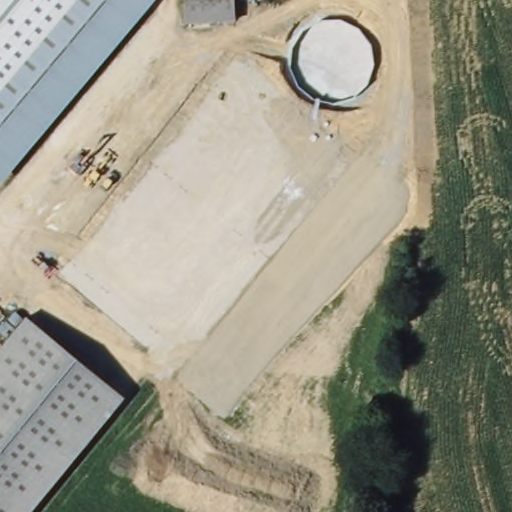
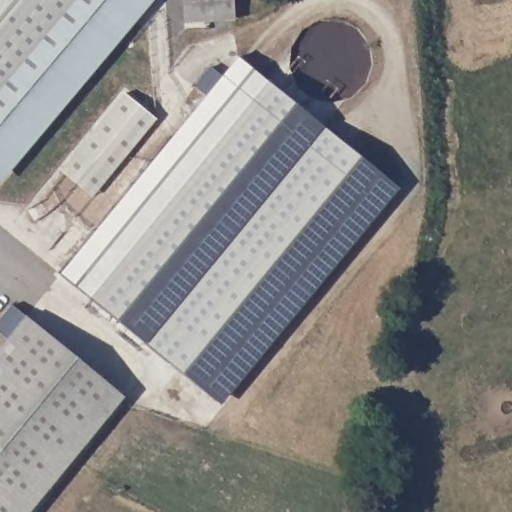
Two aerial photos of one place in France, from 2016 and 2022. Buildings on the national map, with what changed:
unchanged [(0,0),(154,0),(0,182),(0,0)]
unchanged [(186,22),(184,0),(234,0),(236,19),(186,22)]
new [(222,405),(61,275),(207,94),(196,86),(212,67),(222,76),(238,56),(398,188),(222,405)]
new [(94,198),(61,172),(126,92),(157,119),(94,198)]
unchanged [(0,372),(36,329),(118,396),(106,410),(21,512),(0,512),(0,372)]

